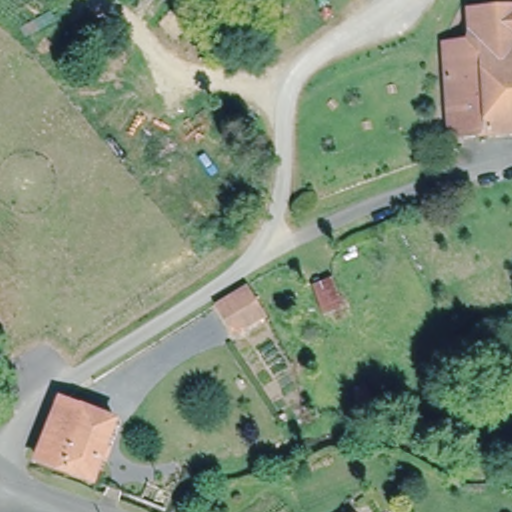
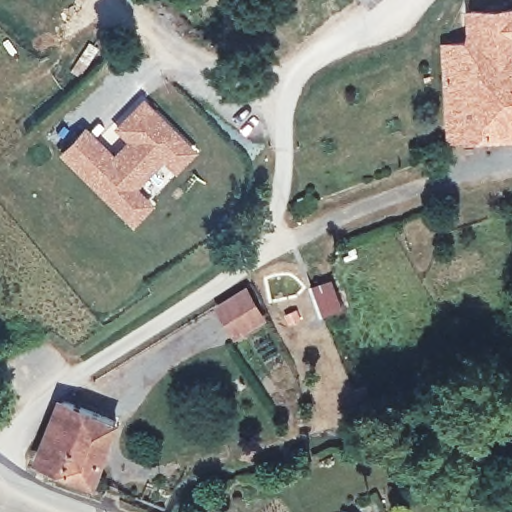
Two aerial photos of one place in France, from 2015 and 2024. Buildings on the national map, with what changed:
unchanged [(194,5),(189,0),(199,0),(194,5)]
unchanged [(441,43),(470,39),(468,10),(512,7),(512,131),(448,138),(441,43)]
new [(198,148),(175,172),(161,159),(136,185),(155,203),(131,227),(57,152),(85,125),(111,152),(124,139),(112,127),(143,96),(198,148)]
unchanged [(333,279),(343,308),(326,314),(315,285),(333,279)]
unchanged [(235,334),(219,305),(228,300),(255,282),(273,313),(257,322),(235,334)]
unchanged [(96,477),(40,453),(68,395),(120,417),(98,472),(96,477)]

